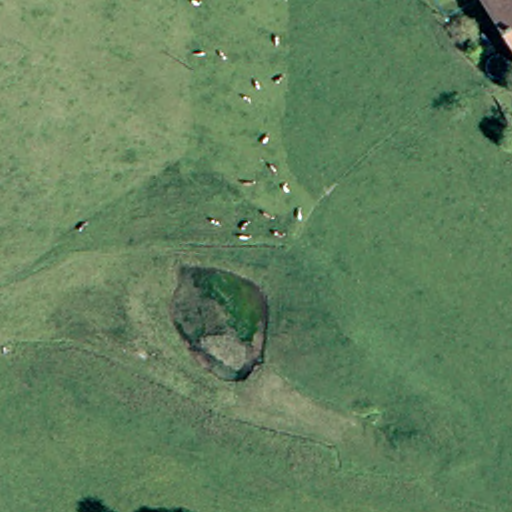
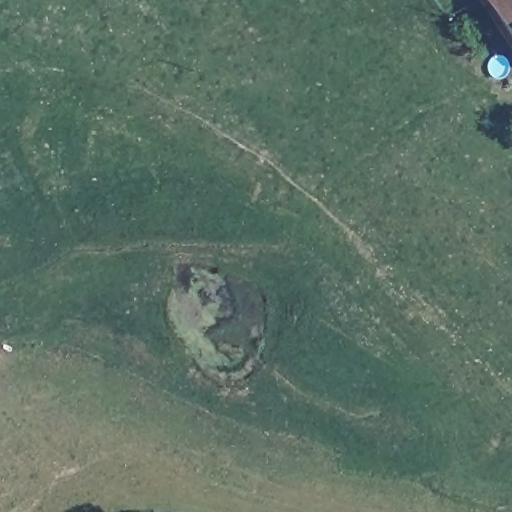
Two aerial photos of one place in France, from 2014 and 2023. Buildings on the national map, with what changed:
unchanged [(512,68),(482,22),(475,10),(491,0),(512,0),(512,68)]

